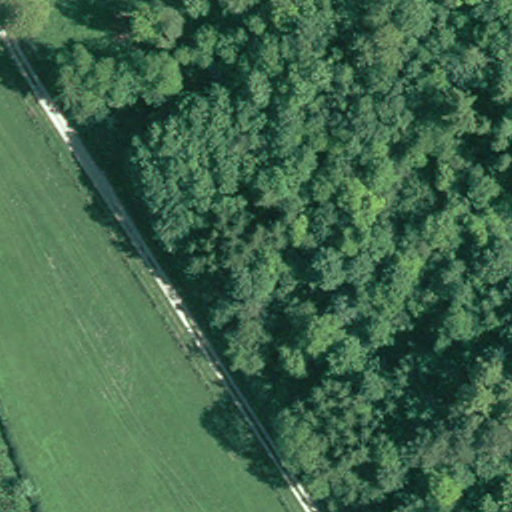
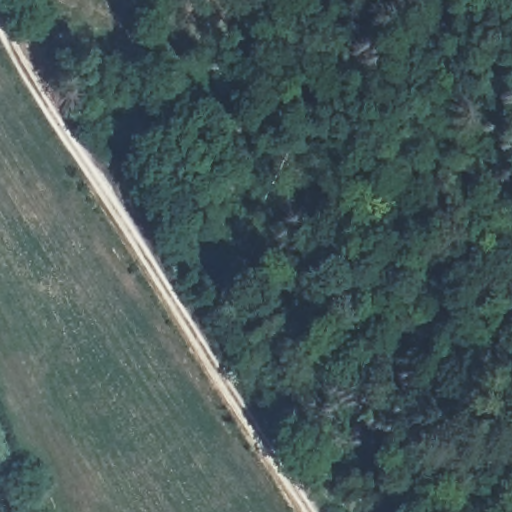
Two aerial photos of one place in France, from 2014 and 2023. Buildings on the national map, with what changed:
unchanged [(208,69),(218,63),(231,91),(221,96),(208,69)]
unchanged [(146,104),(156,99),(164,114),(156,119),(146,104)]

